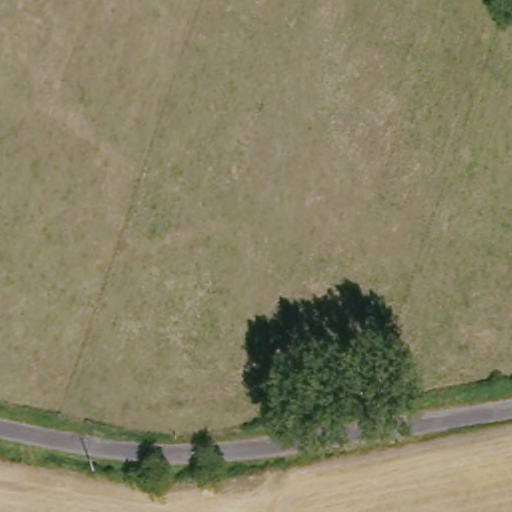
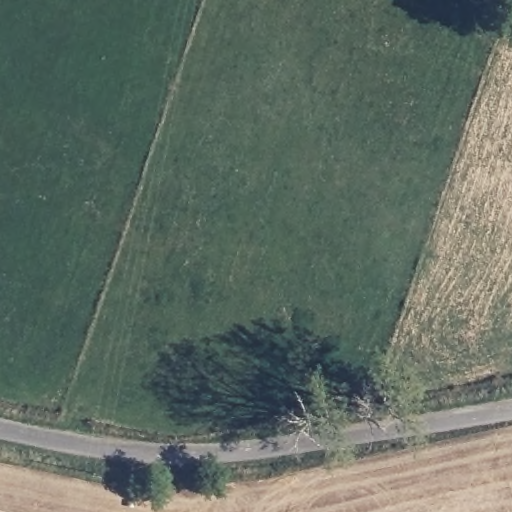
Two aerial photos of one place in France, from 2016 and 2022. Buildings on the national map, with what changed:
[]

